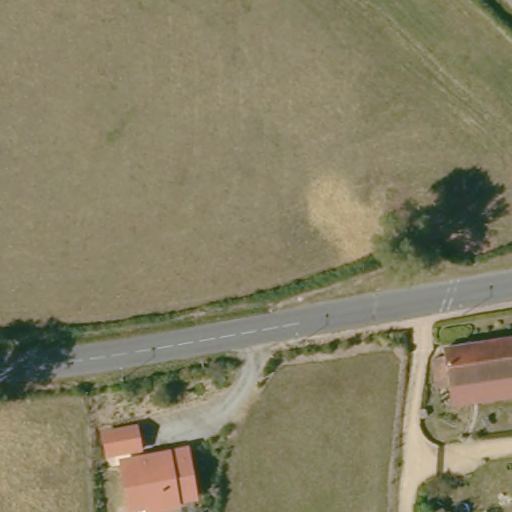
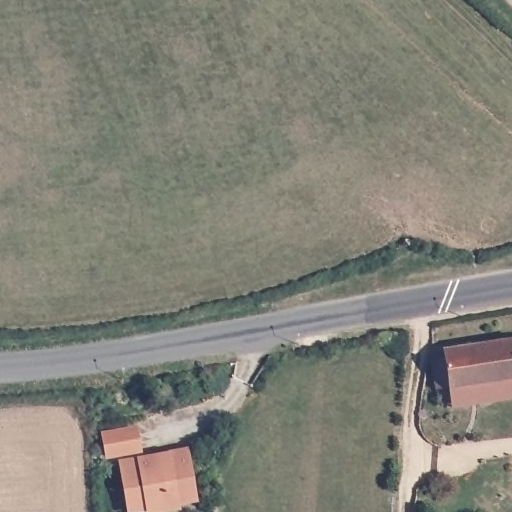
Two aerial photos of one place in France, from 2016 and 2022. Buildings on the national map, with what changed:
unchanged [(448,387),(438,389),(432,357),(442,355),(441,348),(512,335),(512,381),(450,393),(448,387)]
unchanged [(103,456),(100,429),(120,426),(136,426),(139,451),(103,456)]
unchanged [(177,504),(178,509),(159,512),(125,512),(118,460),(187,447),(196,502),(177,504)]

